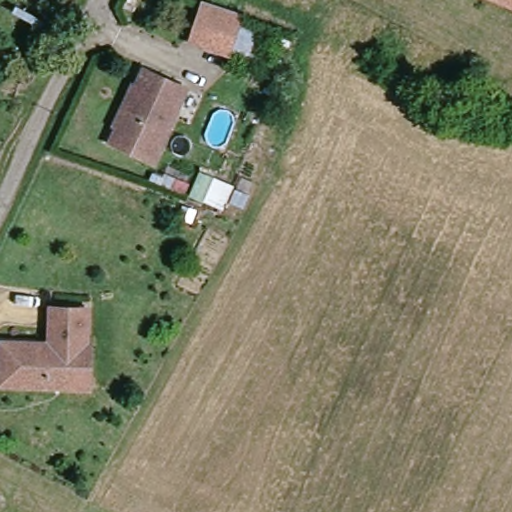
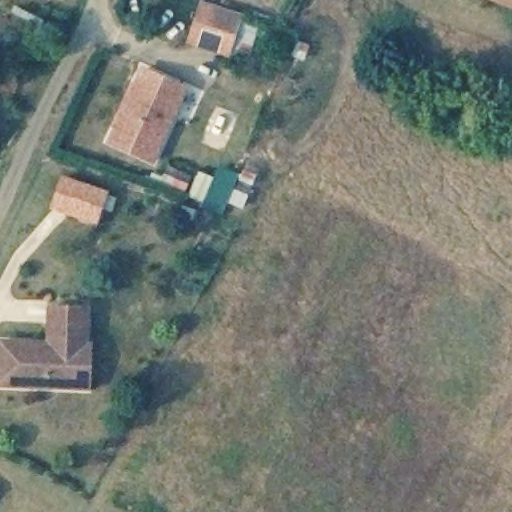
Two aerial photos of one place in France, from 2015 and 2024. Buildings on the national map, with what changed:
unchanged [(499,0),(512,0),(512,6),(499,0)]
unchanged [(228,51),(190,39),(202,1),(240,13),(228,51)]
unchanged [(114,143),(148,70),(178,83),(190,89),(184,104),(156,162),(114,143)]
unchanged [(201,203),(188,197),(198,172),(212,178),(233,186),(222,211),(201,203)]
new [(110,191),(98,226),(49,209),(61,174),(110,191)]
unchanged [(50,387),(3,385),(5,342),(53,344),(54,308),(89,309),(87,346),(95,347),(93,389),(50,387)]

